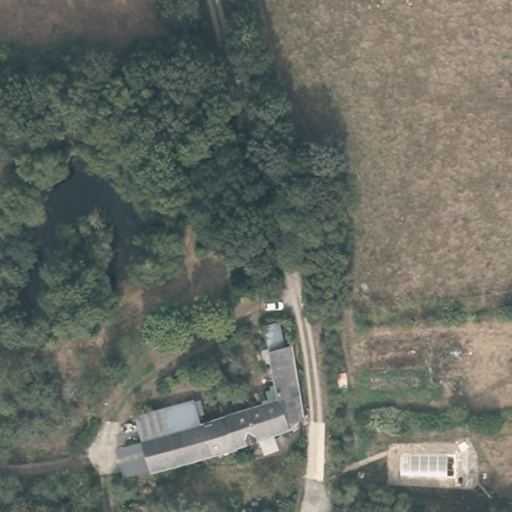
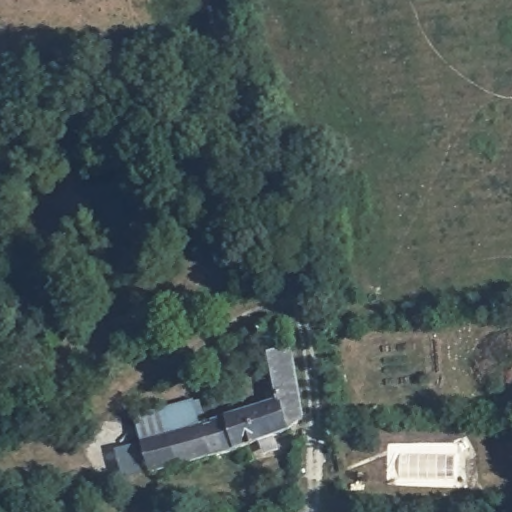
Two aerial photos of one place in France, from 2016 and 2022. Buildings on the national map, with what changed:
unchanged [(129,419),(190,404),(197,426),(273,401),(260,329),(275,326),(282,345),(298,422),(283,427),(283,432),(230,455),(147,480),(129,419)]

